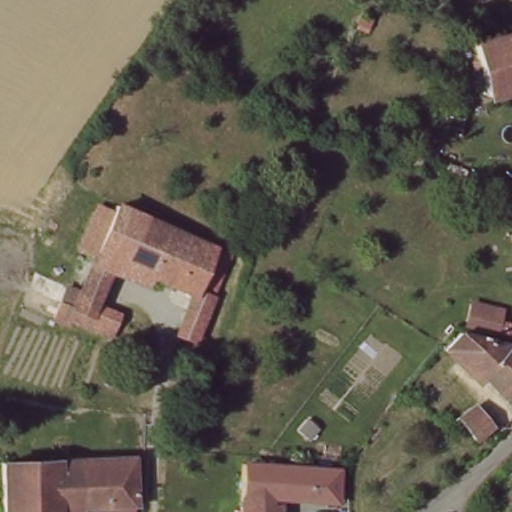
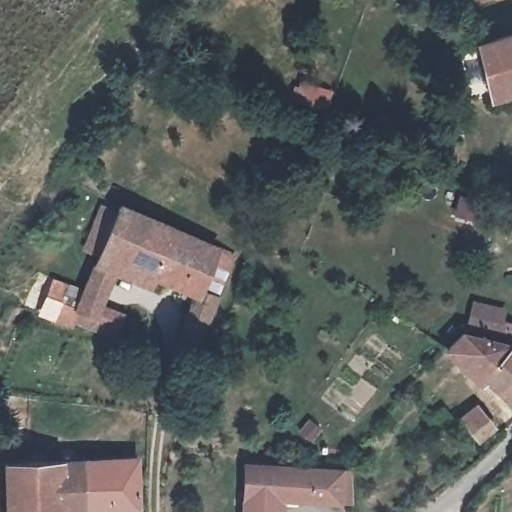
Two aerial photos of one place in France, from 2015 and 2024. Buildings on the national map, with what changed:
unchanged [(487,64),(483,45),(512,38),(512,93),(493,98),(487,64)]
unchanged [(204,293),(219,300),(203,341),(184,333),(199,296),(99,253),(119,210),(220,253),(204,293)]
unchanged [(107,335),(86,325),(70,318),(76,306),(87,280),(102,288),(93,309),(114,318),(107,335)]
unchanged [(474,377),(446,350),(461,335),(504,344),(512,351),(512,401),(480,371),(474,377)]
unchanged [(478,439),(463,422),(474,412),(489,430),(478,439)]
unchanged [(135,506),(132,506),(82,508),(57,510),(56,512),(1,512),(0,503),(0,495),(0,462),(67,461),(82,461),(134,460),(135,506)]
unchanged [(336,501),(279,500),(242,500),(244,468),(337,469),(336,501)]
unchanged [(278,512),(242,512),(242,500),(279,500),(278,512)]

